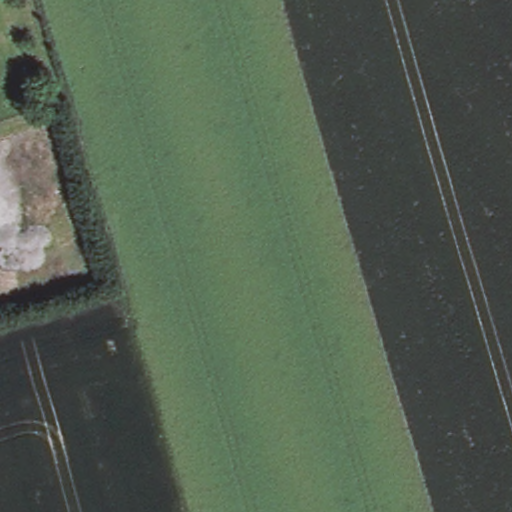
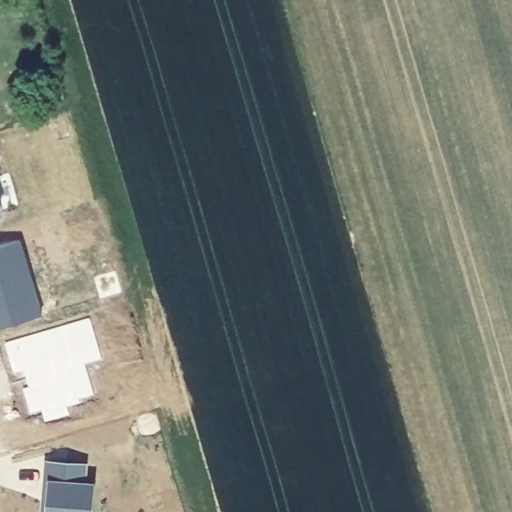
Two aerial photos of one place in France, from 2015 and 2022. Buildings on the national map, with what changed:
new [(2,179),(0,180),(0,173),(2,179)]
new [(2,213),(0,214),(0,206),(2,213)]
new [(21,243),(43,319),(0,332),(0,250),(21,243)]
new [(90,318),(102,361),(85,365),(94,396),(78,399),(79,403),(67,406),(70,416),(46,422),(43,412),(31,414),(24,390),(30,389),(24,371),(13,373),(7,343),(90,318)]
new [(86,468),(85,487),(95,487),(93,512),(45,512),(47,485),(49,466),(86,468)]

